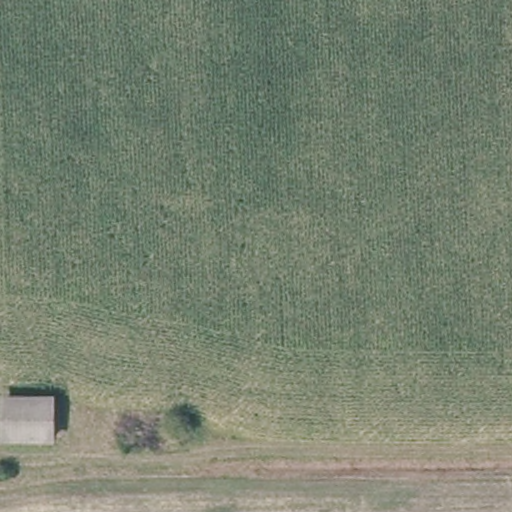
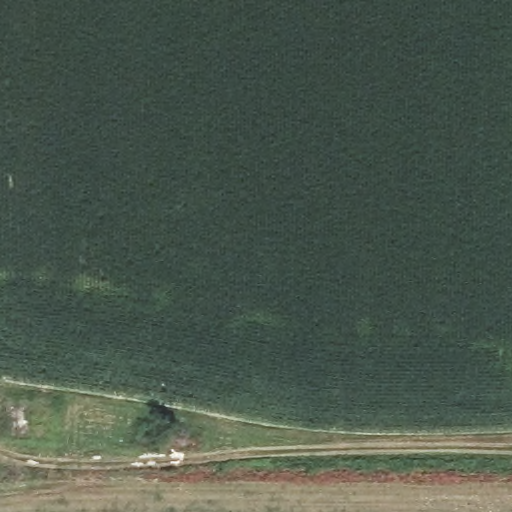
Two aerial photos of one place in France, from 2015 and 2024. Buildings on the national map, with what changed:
demolished [(1,448),(0,391),(57,392),(55,446),(1,448)]

